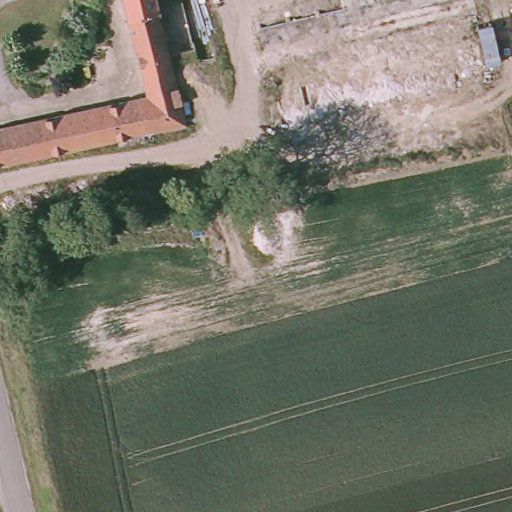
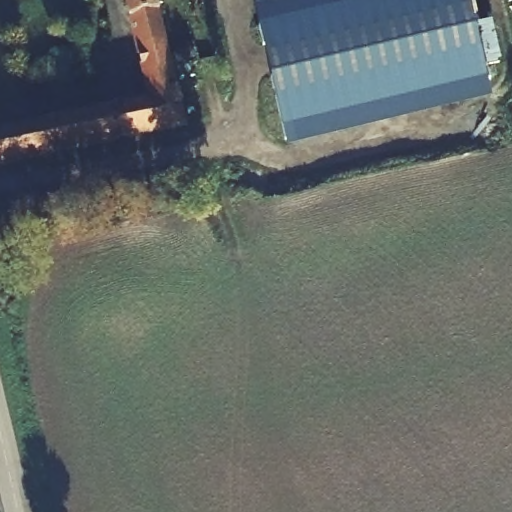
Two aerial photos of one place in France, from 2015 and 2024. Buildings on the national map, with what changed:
unchanged [(158,12),(186,125),(144,134),(145,140),(119,146),(117,139),(0,165),(0,127),(148,97),(136,47),(128,17),(124,0),(157,0),(160,11),(158,12)]
new [(282,0),(470,0),(493,97),(287,145),(254,6),(282,0)]
demolished [(293,2),(303,0),(470,0),(474,15),(303,56),(293,2)]
unchanged [(512,0),(512,5),(511,0),(512,0)]
demolished [(303,56),(474,15),(486,65),(314,108),(303,56)]

